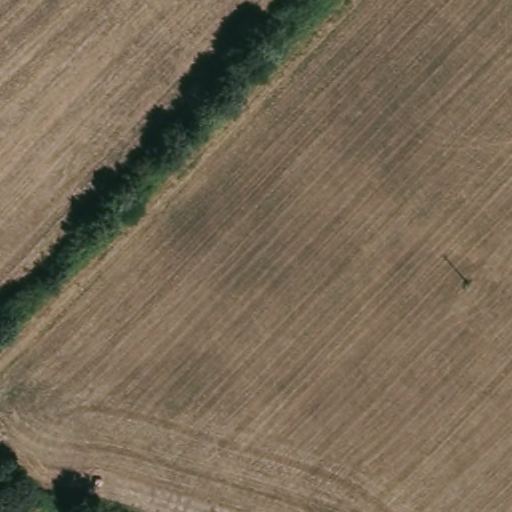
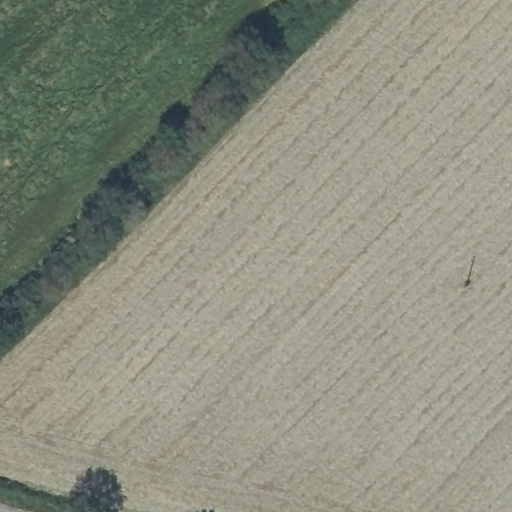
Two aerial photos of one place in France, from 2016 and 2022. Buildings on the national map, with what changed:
[]

